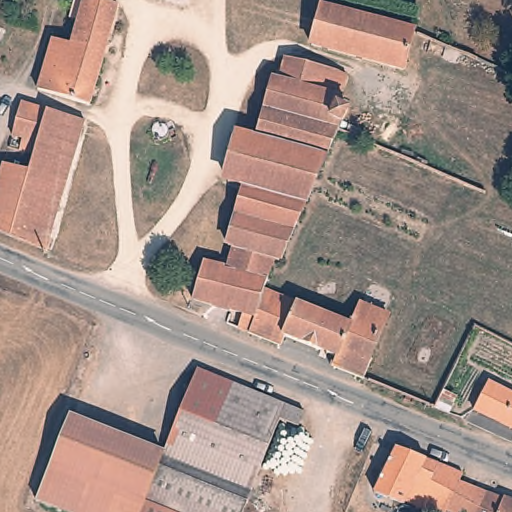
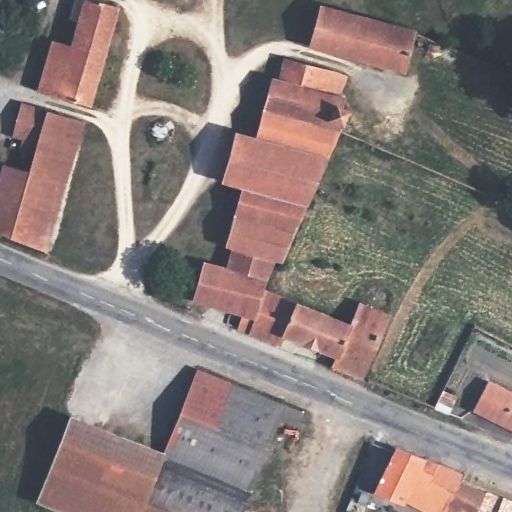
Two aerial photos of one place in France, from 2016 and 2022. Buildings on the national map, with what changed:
unchanged [(53,44),(72,50),(79,26),(70,24),(74,9),(83,11),(86,2),(118,12),(89,110),(38,95),(53,44)]
unchanged [(315,52),(326,11),(419,36),(419,37),(409,77),(315,52)]
unchanged [(241,140),(244,139),(261,143),(278,83),(283,84),(289,62),(350,80),(344,100),(347,101),(343,110),(351,115),(345,127),(343,127),(340,133),(283,264),(278,262),(271,280),(231,272),(236,252),(231,251),(248,192),(231,187),(229,184),(241,140)]
unchanged [(0,237),(0,183),(4,169),(29,175),(34,159),(20,155),(23,143),(12,141),(21,107),(85,127),(46,256),(10,242),(0,237)]
unchanged [(231,272),(271,280),(273,280),(270,293),(301,307),(355,328),(346,351),(373,362),(377,363),(369,383),(337,371),(341,361),(290,341),(286,351),(243,334),(248,319),(198,306),(206,267),(231,272)]
unchanged [(346,351),(355,328),(365,306),(392,317),(373,362),(346,351)]
unchanged [(163,457),(166,451),(198,373),(304,417),(299,431),(280,423),(253,492),(163,457)]
unchanged [(492,422),(474,413),(488,385),(512,397),(512,433),(492,422)]
unchanged [(442,410),(436,407),(444,390),(457,396),(449,413),(442,410)]
unchanged [(67,512),(38,501),(70,415),(166,451),(163,457),(238,487),(253,492),(245,512),(67,512)]
unchanged [(404,503),(374,492),(397,446),(438,462),(441,464),(461,472),(462,473),(459,481),(454,491),(445,511),(444,512),(431,512),(405,500),(404,503)]
unchanged [(454,491),(459,481),(487,492),(478,512),(448,512),(445,511),(454,491)]
unchanged [(512,501),(512,512),(478,512),(487,492),(512,501)]

